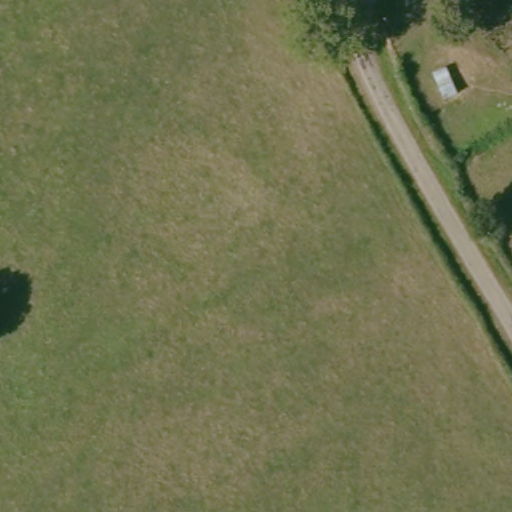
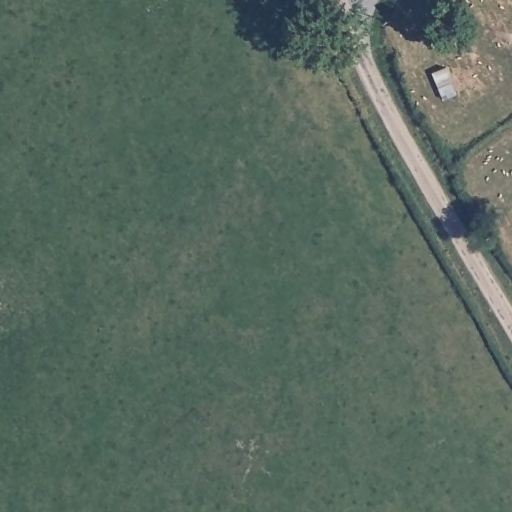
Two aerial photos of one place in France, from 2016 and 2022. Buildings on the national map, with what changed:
[]

